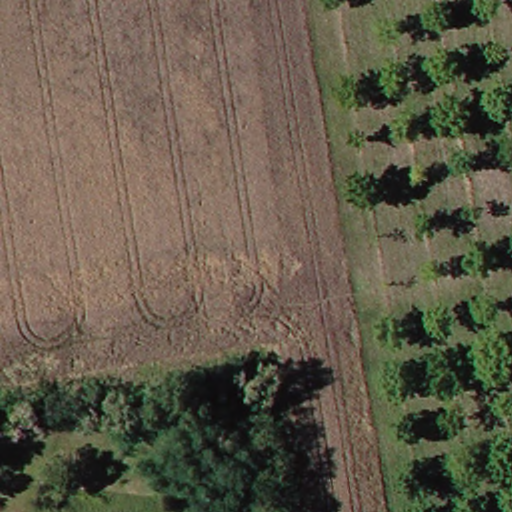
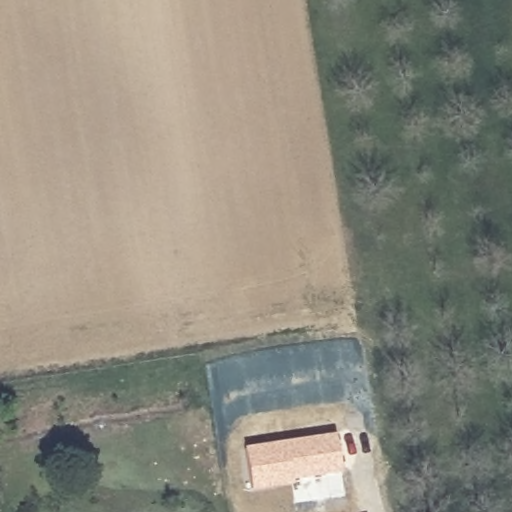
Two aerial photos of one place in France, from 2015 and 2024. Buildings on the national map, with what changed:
new [(244,447),(333,434),(341,472),(291,479),(292,485),(250,490),(244,447)]

